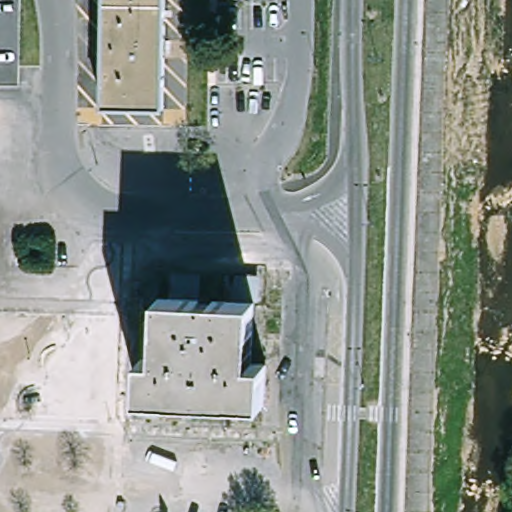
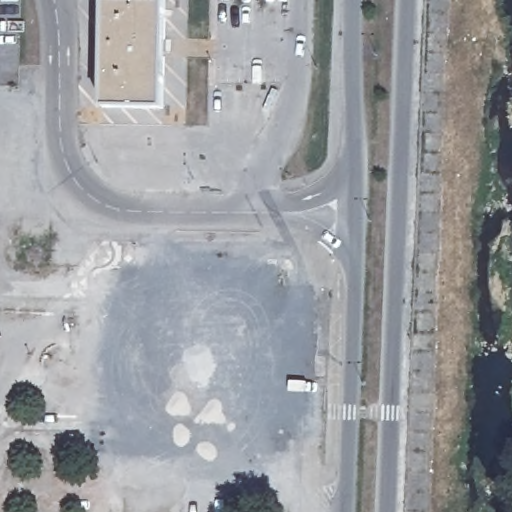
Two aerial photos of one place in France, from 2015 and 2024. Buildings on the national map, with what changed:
unchanged [(169,108),(108,107),(109,0),(170,0),(169,108)]
demolished [(145,413),(147,373),(160,374),(165,283),(205,284),(204,311),(220,312),(221,285),(263,287),(259,377),(272,377),(270,419),(145,413)]

